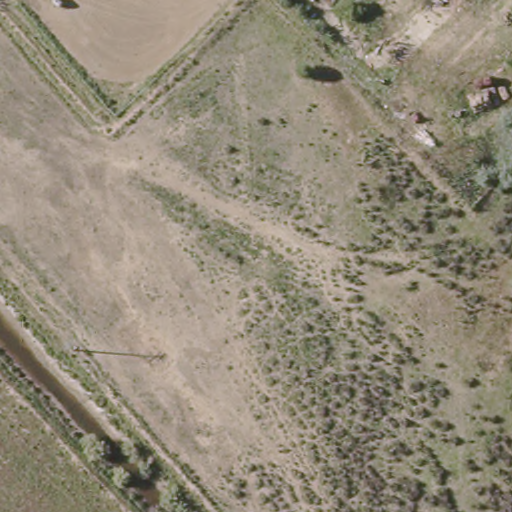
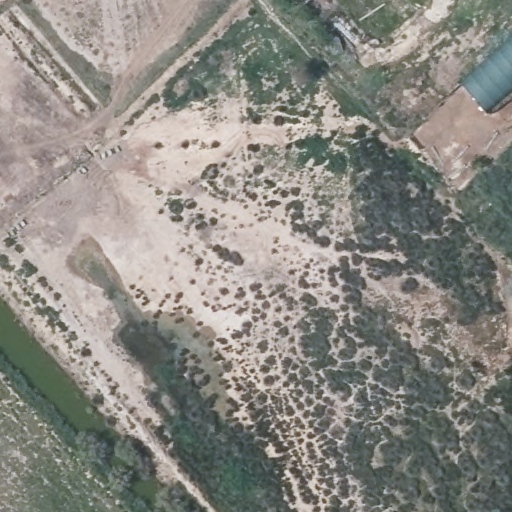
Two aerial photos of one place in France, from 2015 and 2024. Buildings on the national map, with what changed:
new [(512,39),(512,91),(488,112),(462,82),(512,39)]

